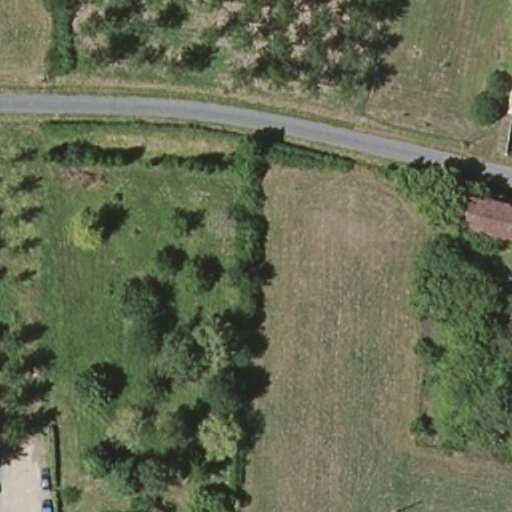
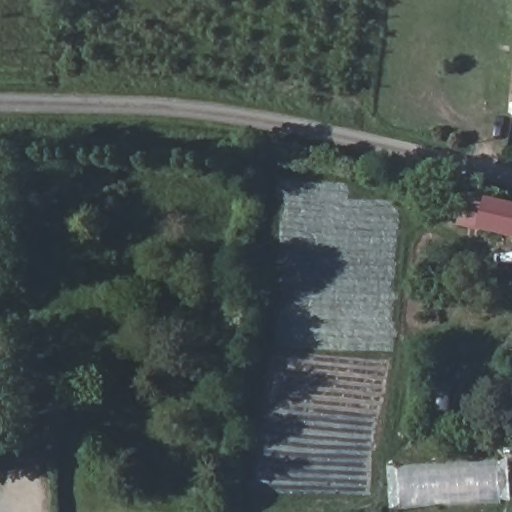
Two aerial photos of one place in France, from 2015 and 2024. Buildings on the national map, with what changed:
unchanged [(473,200),(512,208),(512,238),(468,229),(473,200)]
new [(399,468),(498,462),(501,504),(402,510),(399,468)]

